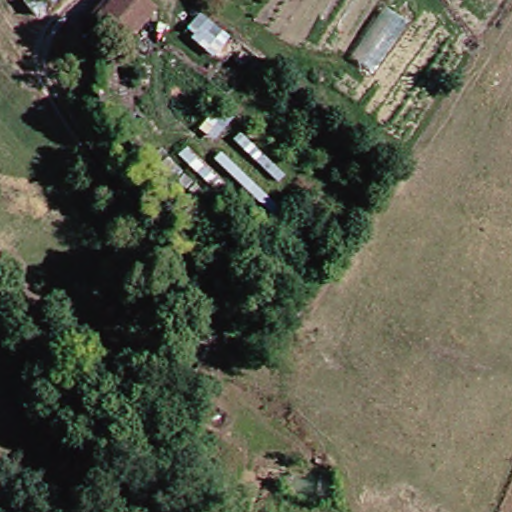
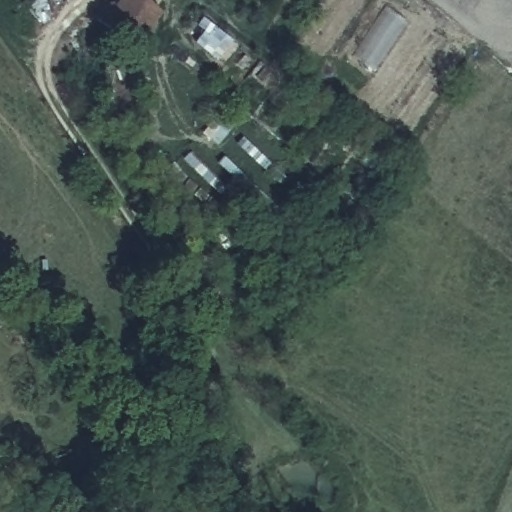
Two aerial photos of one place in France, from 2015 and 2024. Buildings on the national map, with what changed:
unchanged [(140,46),(107,19),(123,0),(148,0),(165,15),(140,46)]
unchanged [(231,40),(211,67),(181,44),(201,19),(231,40)]

